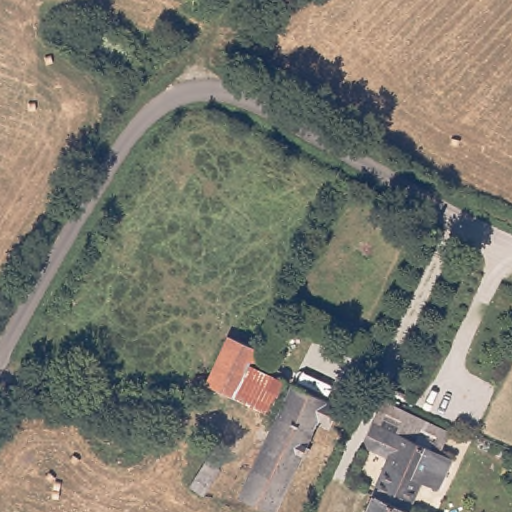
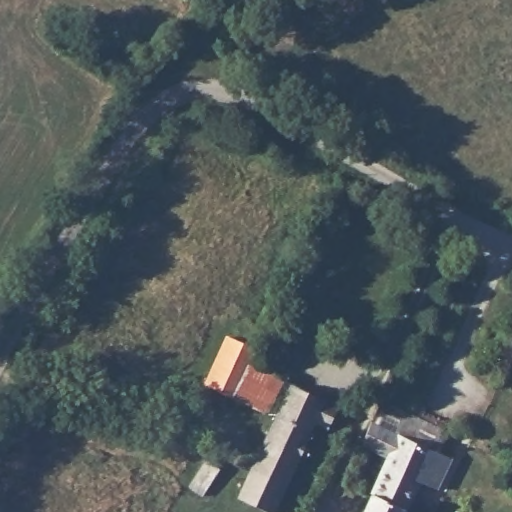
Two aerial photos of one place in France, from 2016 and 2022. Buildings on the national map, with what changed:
unchanged [(225,331),(255,345),(249,360),(235,393),(206,379),(225,331)]
unchanged [(249,360),(282,377),(267,409),(235,393),(249,360)]
unchanged [(290,380),(338,403),(327,426),(314,420),(288,474),(270,512),(239,512),(230,508),(290,380)]
unchanged [(376,491),(393,452),(374,443),(369,433),(387,396),(453,426),(445,447),(436,451),(412,507),(409,512),(367,512),(376,491)]
unchanged [(191,511),(174,501),(192,473),(206,484),(202,491),(191,511)]

